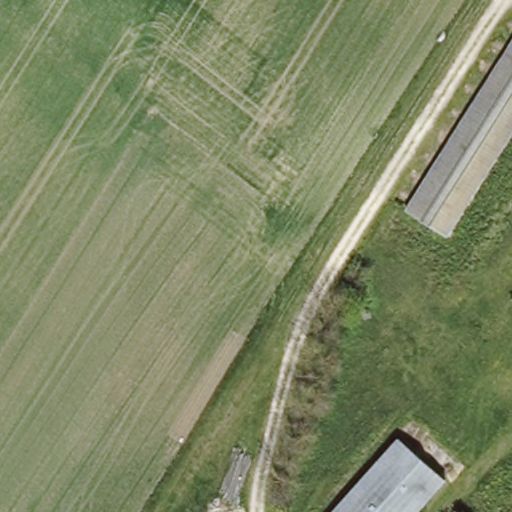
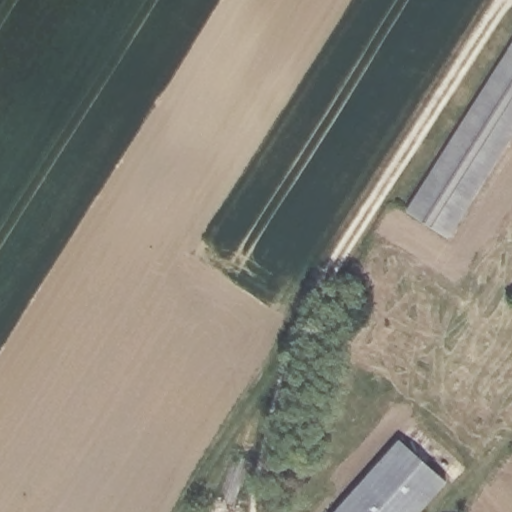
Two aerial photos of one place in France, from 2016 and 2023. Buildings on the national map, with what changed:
unchanged [(445,235),(405,210),(512,43),(512,131),(445,235)]
unchanged [(422,512),(341,512),(400,445),(446,485),(422,512)]

